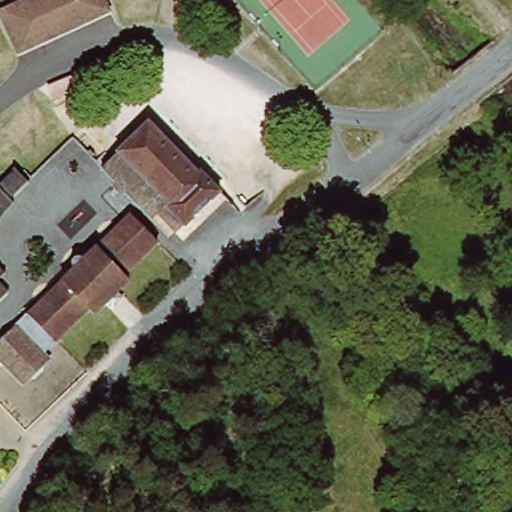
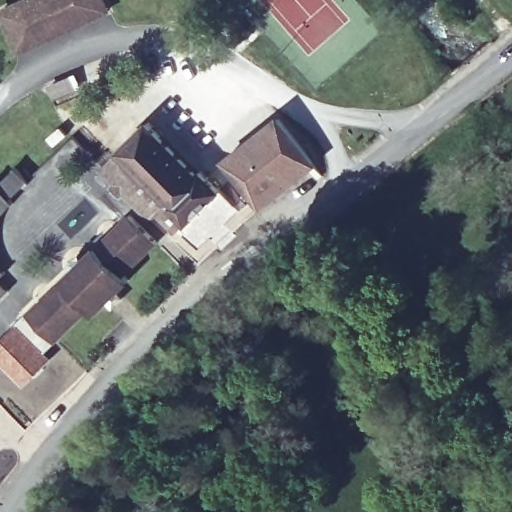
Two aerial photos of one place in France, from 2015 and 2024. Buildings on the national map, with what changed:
unchanged [(101,0),(104,7),(15,49),(0,19),(0,6),(12,0),(101,0)]
new [(281,114),(320,164),(259,211),(220,162),(281,114)]
unchanged [(159,224),(104,167),(150,120),(221,192),(181,234),(165,217),(159,224)]
unchanged [(0,221),(0,180),(12,169),(23,180),(10,194),(11,202),(2,215),(0,221)]
unchanged [(3,342),(123,217),(151,247),(135,263),(118,281),(123,287),(94,321),(87,313),(43,358),(41,374),(35,382),(20,381),(2,361),(0,354),(0,349),(3,342)]
unchanged [(8,274),(0,283),(0,257),(8,274)]
unchanged [(6,296),(0,302),(0,286),(6,296)]

